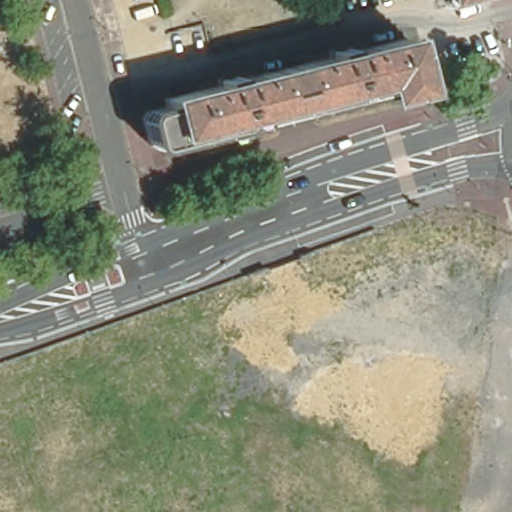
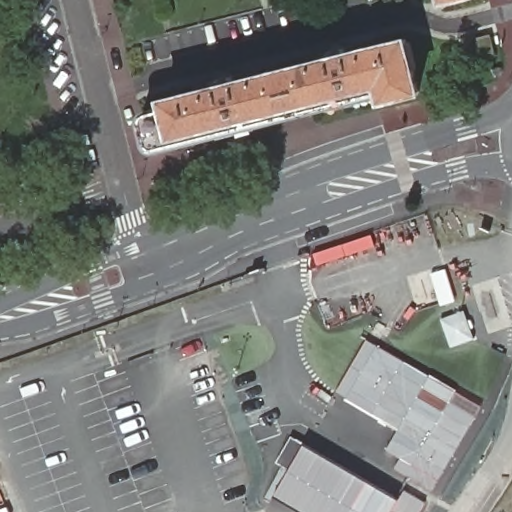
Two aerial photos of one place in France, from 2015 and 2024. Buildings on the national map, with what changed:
unchanged [(149,136),(143,115),(143,114),(142,114),(143,113),(143,112),(144,111),(144,110),(145,109),(145,108),(146,108),(146,107),(147,107),(165,102),(164,95),(205,84),(211,83),(218,81),(216,75),(234,71),(235,76),(242,75),(248,73),(317,56),(323,54),(330,52),(328,47),(346,42),(347,48),(354,46),(360,45),(406,33),(420,85),(383,94),(382,93),(331,105),(330,99),(308,104),(280,111),(258,117),(260,124),(220,134),(218,127),(194,133),(157,142),(156,143),(155,143),(154,143),(152,143),(152,142),(151,142),(151,141),(150,140),(149,136)]
new [(433,490),(395,467),(400,457),(386,449),(397,429),(335,392),(367,338),(482,404),(433,490)]
new [(303,512),(273,495),(288,468),(276,460),(291,436),(399,498),(405,488),(426,501),(420,512),(303,512)]

